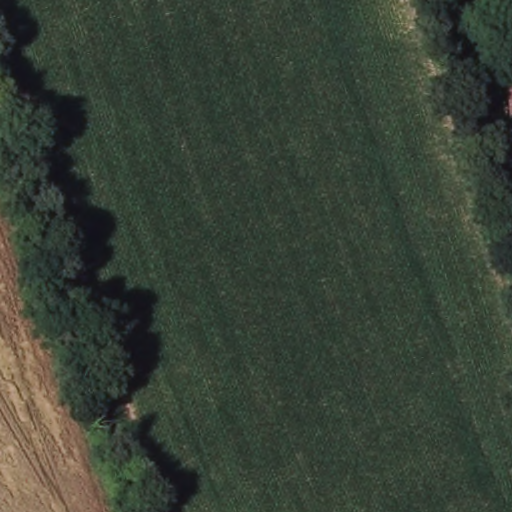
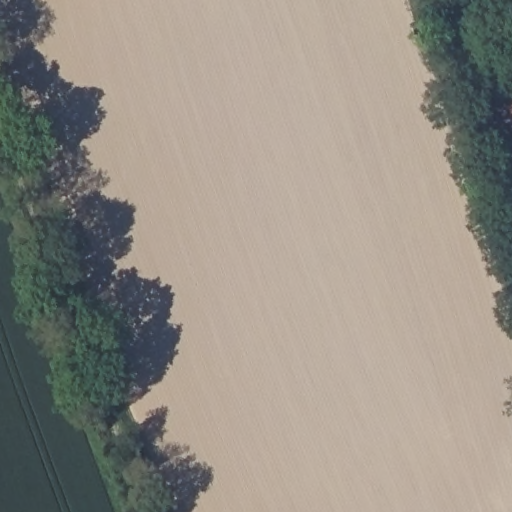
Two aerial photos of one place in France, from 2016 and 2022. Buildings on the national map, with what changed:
unchanged [(506,78),(512,78),(512,116),(506,78)]

